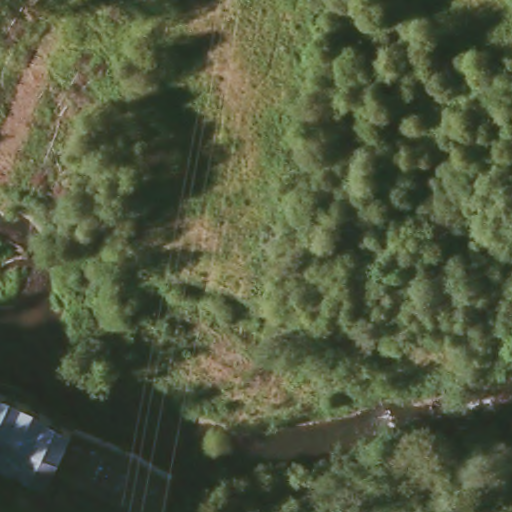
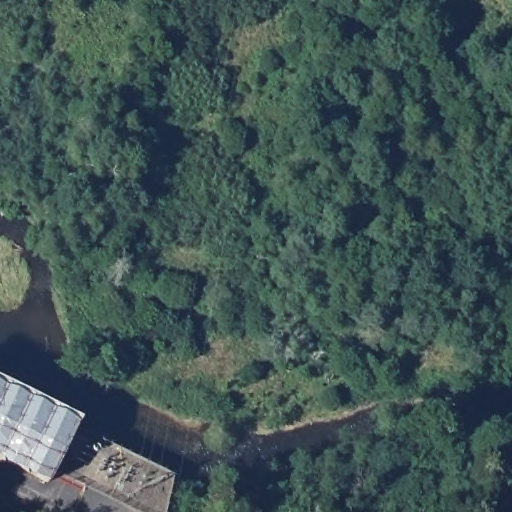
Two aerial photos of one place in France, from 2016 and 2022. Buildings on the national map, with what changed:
unchanged [(86,441),(79,460),(70,450),(53,482),(0,455),(0,391),(75,427),(86,441)]

